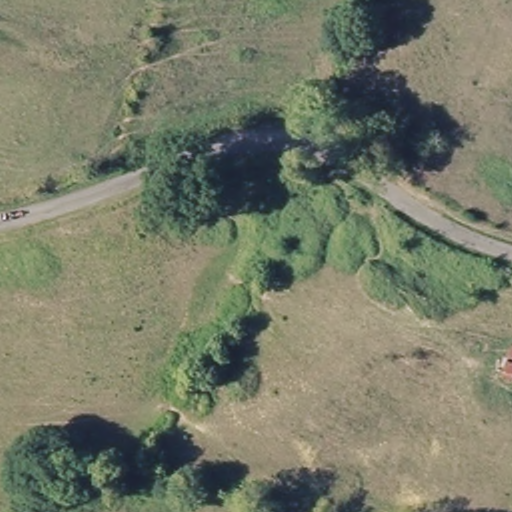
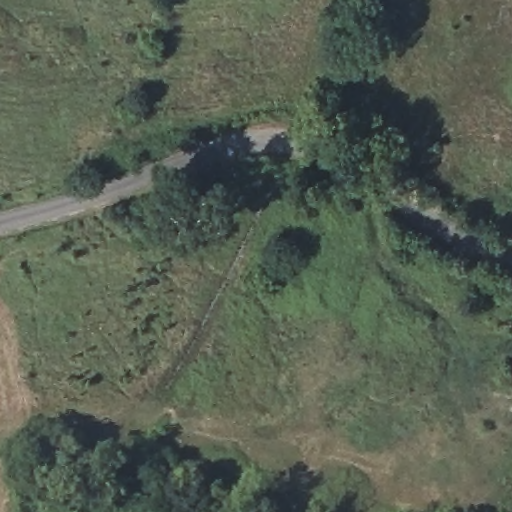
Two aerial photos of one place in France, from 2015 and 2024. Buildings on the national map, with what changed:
unchanged [(504,376),(512,350),(512,377),(504,376)]

